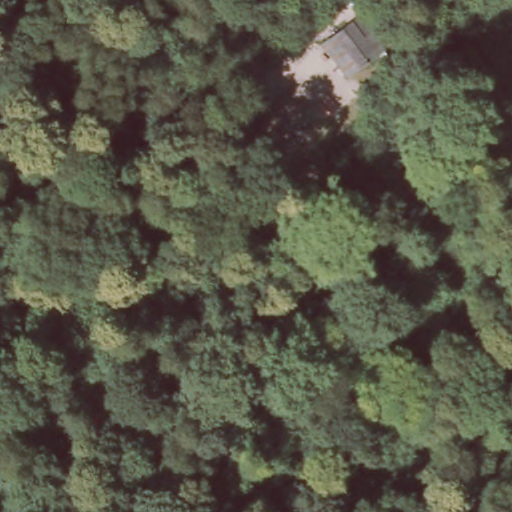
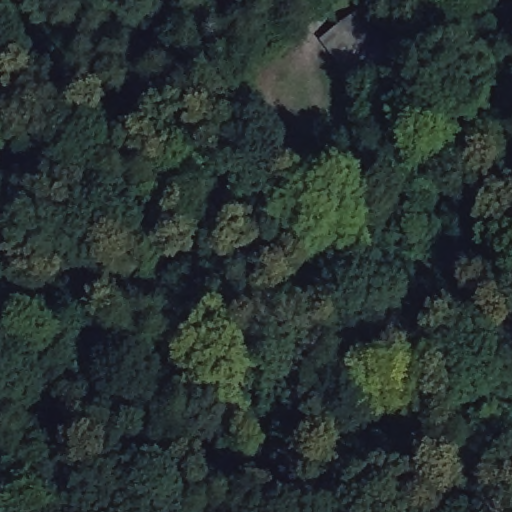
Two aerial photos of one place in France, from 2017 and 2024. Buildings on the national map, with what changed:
unchanged [(358,56),(338,17),(357,7),(362,16),(370,12),(378,27),(370,31),(378,46),(358,56)]

